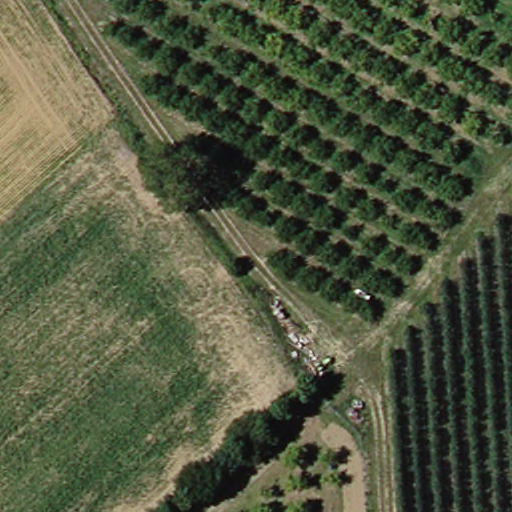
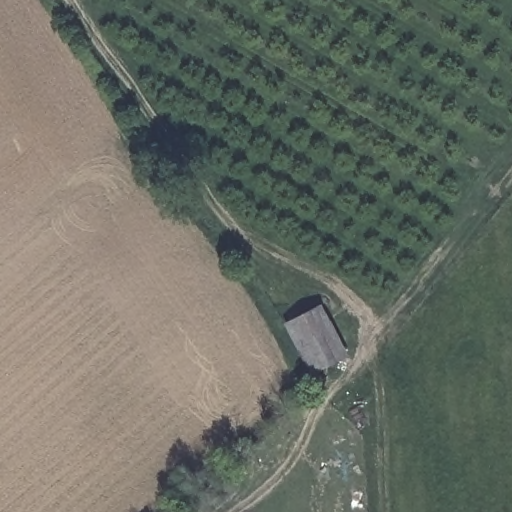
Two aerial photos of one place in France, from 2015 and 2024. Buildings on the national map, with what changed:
new [(347,356),(322,369),(320,365),(309,371),(284,323),(321,304),(347,356)]

